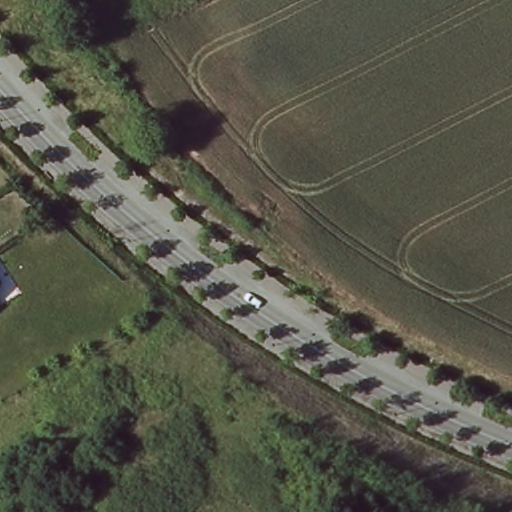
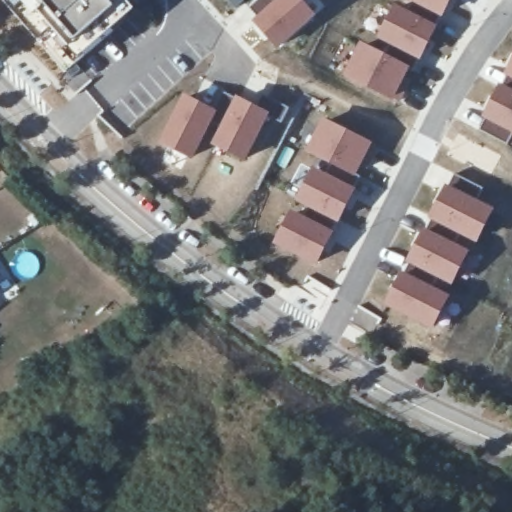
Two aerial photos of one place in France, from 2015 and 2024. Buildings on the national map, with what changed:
new [(100,46),(54,2),(55,0),(151,0),(152,2),(100,46)]
new [(276,51),(252,20),(257,16),(249,7),(257,0),(301,0),(316,16),(276,51)]
new [(409,71),(394,102),(342,77),(360,42),(385,54),(389,46),(378,40),(395,4),(410,11),(414,4),(406,0),(449,0),(414,73),(409,71)]
new [(477,132),(485,119),(481,119),(499,84),(502,86),(507,77),(504,76),(512,58),(512,135),(507,147),(477,132)]
new [(214,107),(223,92),(235,99),(237,96),(257,106),(263,97),(289,110),(281,126),(269,120),(247,162),(212,146),(221,126),(212,123),(192,162),(157,143),(182,92),(214,107)]
new [(371,143),(357,176),(360,177),(317,267),(272,244),(289,212),(304,219),(309,210),(294,202),(312,167),(326,174),(332,165),(305,151),(322,117),(371,143)]
new [(499,157),(487,181),(460,166),(472,143),(499,157)]
new [(448,186),(454,175),(482,189),(477,200),(492,209),(475,244),(460,235),(455,244),(468,251),(452,286),(437,280),(434,288),(450,296),(432,331),(383,306),(401,272),(404,273),(409,264),(405,262),(424,229),(425,231),(430,220),(429,219),(445,184),(448,186)]

